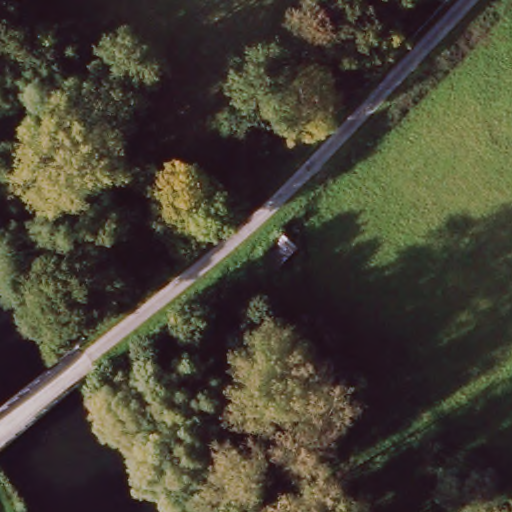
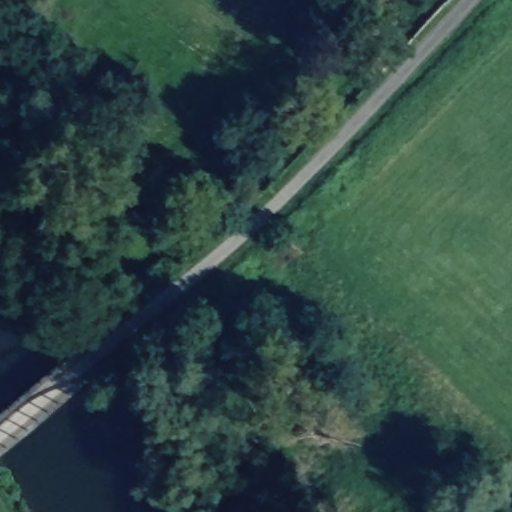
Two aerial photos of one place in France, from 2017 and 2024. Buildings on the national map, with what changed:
unchanged [(276,266),(263,253),(283,235),(296,246),(276,266)]

